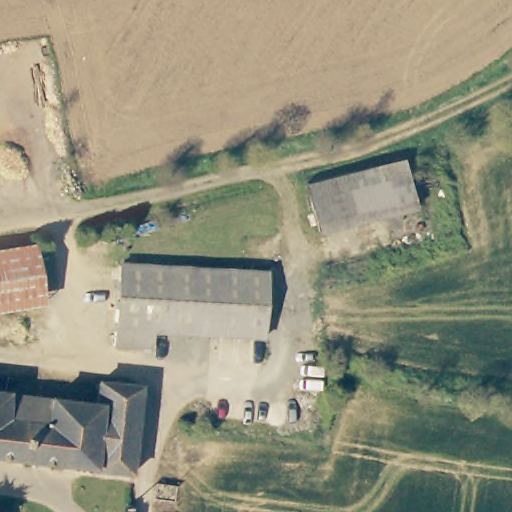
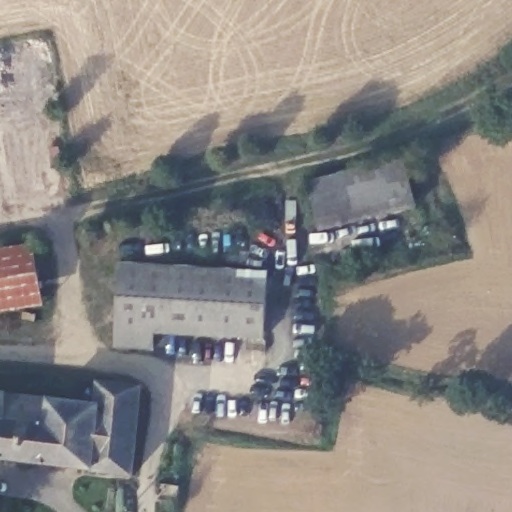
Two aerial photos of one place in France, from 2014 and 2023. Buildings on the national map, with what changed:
unchanged [(304,181),(309,180),(362,167),(400,157),(411,206),(316,230),(304,181)]
unchanged [(0,250),(32,246),(40,304),(0,310),(0,250)]
unchanged [(154,346),(117,344),(123,263),(270,272),(264,336),(155,330),(154,346)]
unchanged [(95,381),(138,386),(128,474),(0,457),(0,392),(94,404),(95,381)]

